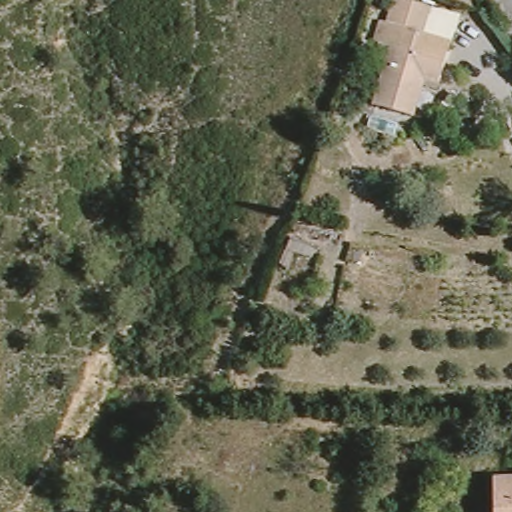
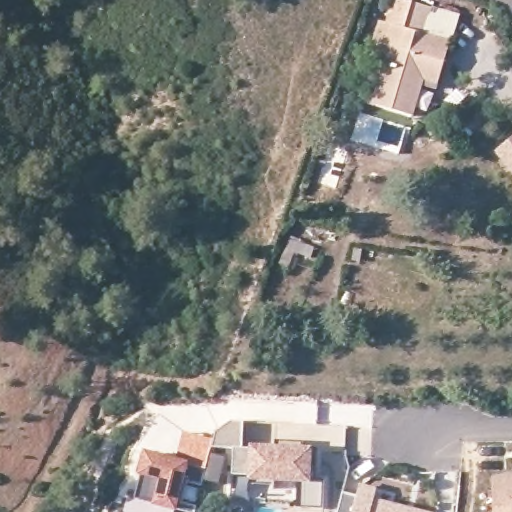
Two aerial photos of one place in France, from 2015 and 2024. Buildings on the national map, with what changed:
unchanged [(424,82),(413,114),(377,103),(392,46),(378,41),(384,20),(405,27),(414,1),(434,6),(426,33),(450,40),(439,79),(437,86),(424,82)]
new [(512,134),(512,168),(495,146),(512,134)]
new [(232,421),(244,421),(243,448),(275,450),(276,441),(303,442),(303,451),(310,451),(317,451),(316,467),(310,467),(309,480),(324,481),(323,510),(297,509),(298,481),(275,480),(275,486),(252,485),(252,477),(232,476),(234,449),(212,448),(216,432),(232,421)]
new [(185,430),(215,438),(212,448),(201,484),(183,480),(179,498),(196,505),(194,512),(172,512),(155,506),(156,501),(136,497),(141,475),(148,451),(174,458),(185,430)]
unchanged [(512,477),(512,512),(495,512),(495,478),(512,477)]
new [(358,497),(360,487),(377,491),(374,501),(415,512),(338,512),(343,493),(358,497)]

